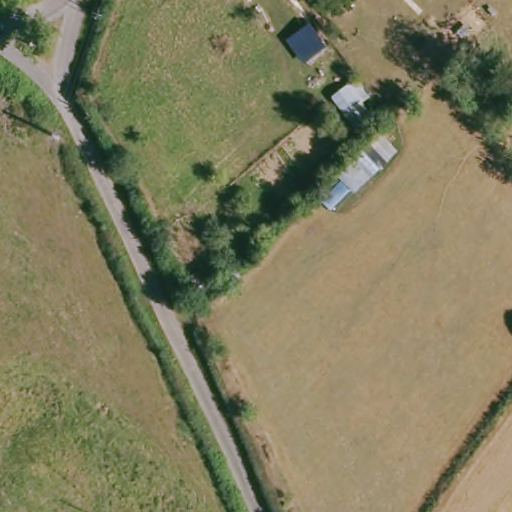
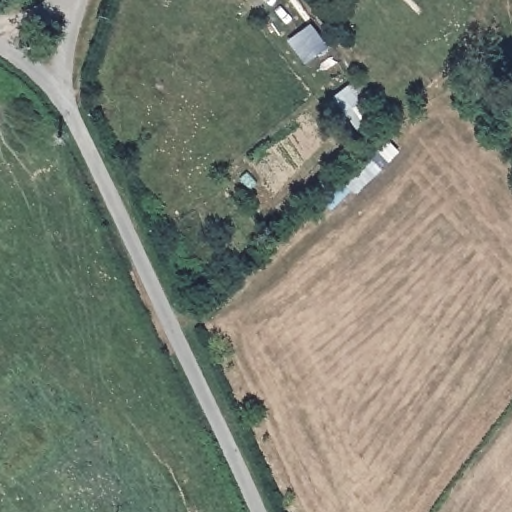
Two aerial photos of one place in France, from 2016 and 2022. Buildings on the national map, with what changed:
unchanged [(330,96),(352,76),(380,116),(360,138),(330,96)]

